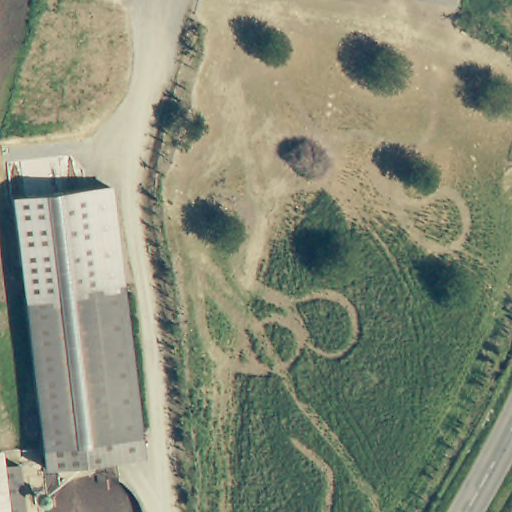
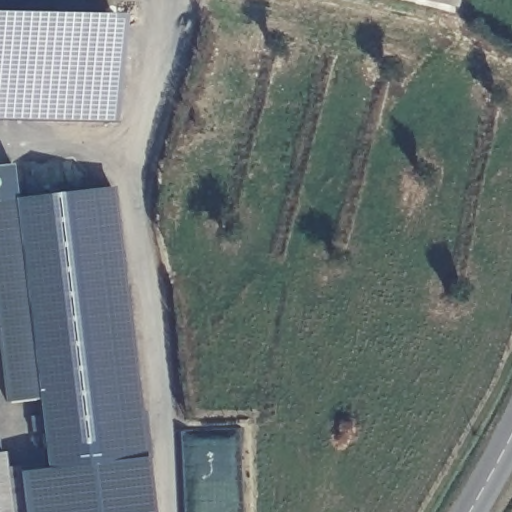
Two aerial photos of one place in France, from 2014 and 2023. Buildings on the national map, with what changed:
unchanged [(451,3),(440,0),(452,0),(451,3)]
new [(115,17),(114,124),(0,121),(0,14),(115,17)]
unchanged [(25,294),(15,198),(110,187),(121,285),(25,294)]
unchanged [(121,285),(142,455),(45,464),(25,294),(121,285)]
unchanged [(0,453),(2,469),(17,468),(24,512),(0,512),(0,453)]

